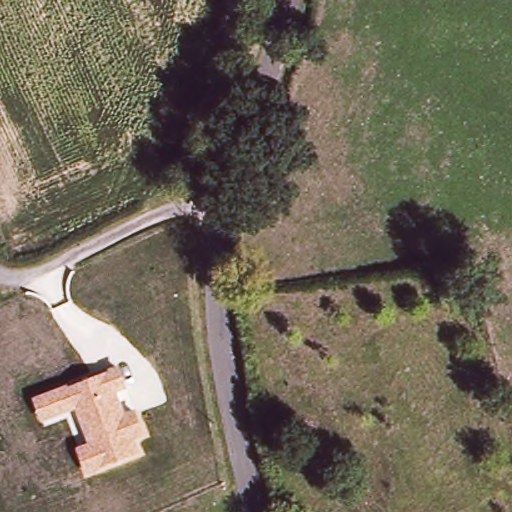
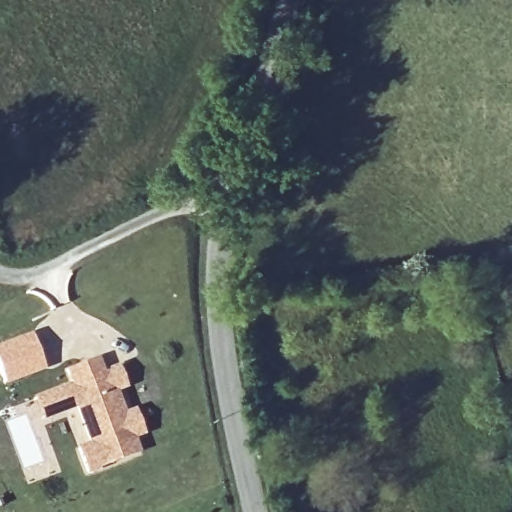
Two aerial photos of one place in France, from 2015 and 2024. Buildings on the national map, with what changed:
new [(44,371),(3,386),(0,376),(0,343),(30,332),(44,371)]
unchanged [(121,365),(129,388),(118,392),(126,411),(137,407),(147,436),(134,441),(140,454),(86,476),(75,447),(89,440),(78,409),(42,423),(33,397),(121,365)]

